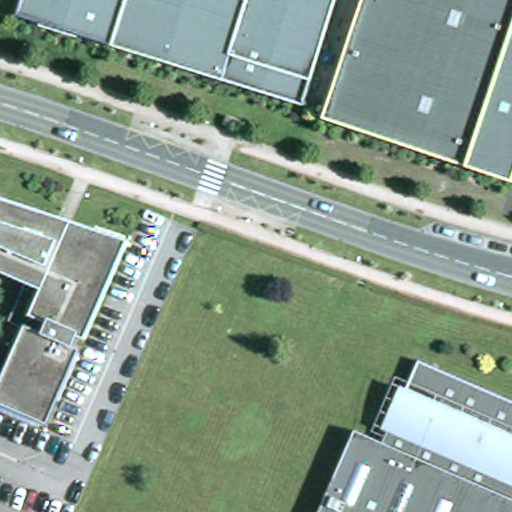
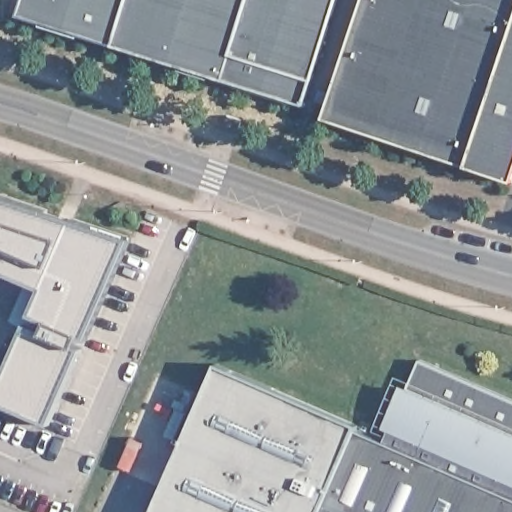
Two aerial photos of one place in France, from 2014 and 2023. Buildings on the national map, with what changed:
unchanged [(299,115),(12,17),(18,0),(335,0),(299,115)]
unchanged [(326,124),(366,0),(512,0),(512,190),(326,124)]
unchanged [(229,124),(244,129),(241,139),(225,134),(229,124)]
unchanged [(23,320),(37,287),(0,272),(0,196),(50,212),(48,216),(64,223),(62,228),(72,232),(76,221),(134,240),(91,343),(85,340),(80,352),(31,332),(23,320)]
unchanged [(80,352),(86,355),(54,432),(1,410),(31,332),(80,352)]
new [(154,512),(218,363),(363,427),(361,436),(329,512),(154,512)]
unchanged [(329,512),(361,436),(388,448),(424,363),(512,403),(512,512),(329,512)]

